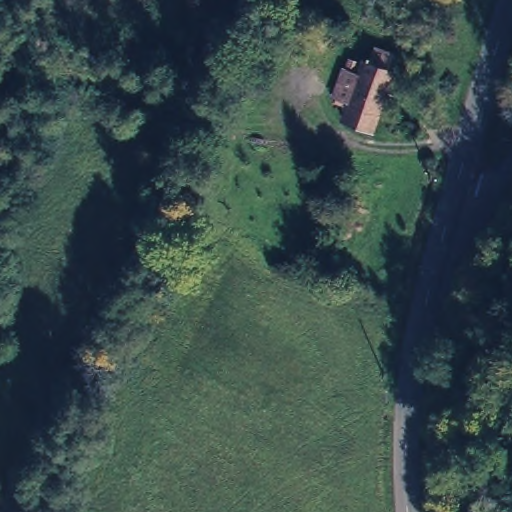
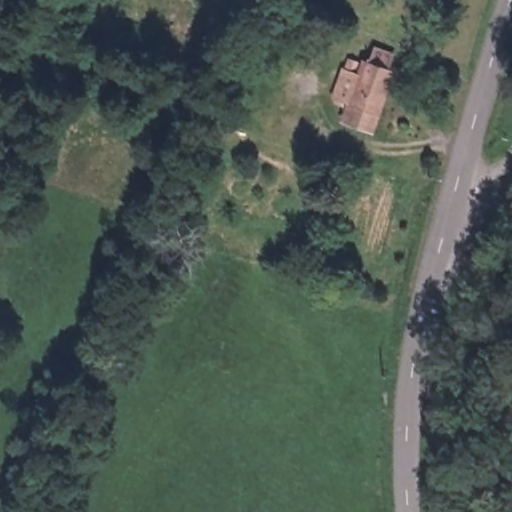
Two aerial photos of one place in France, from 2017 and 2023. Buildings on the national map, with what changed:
unchanged [(379,114),(353,104),(367,65),(374,67),(381,52),(395,57),(389,72),(392,74),(379,114)]

